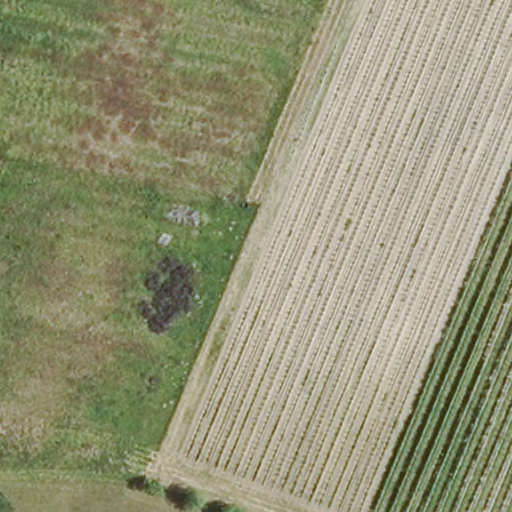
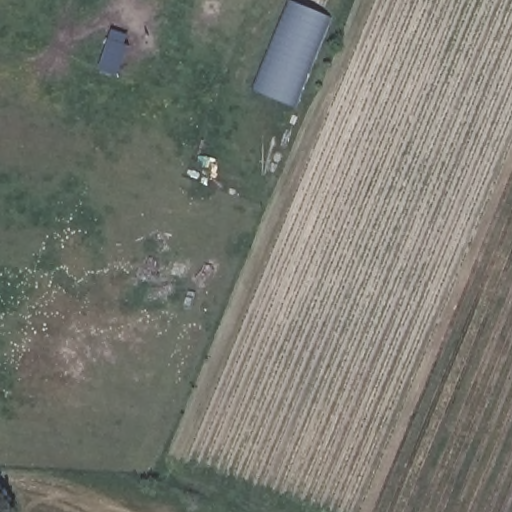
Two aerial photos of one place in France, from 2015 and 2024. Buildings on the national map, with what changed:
new [(258,85),(290,5),(300,9),(302,5),(327,15),(291,105),(273,98),(276,92),(258,85)]

